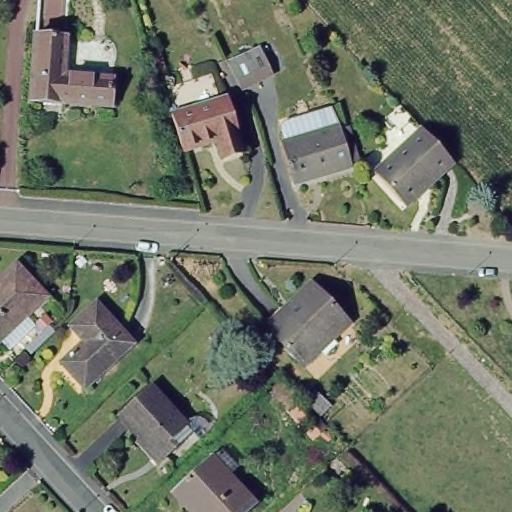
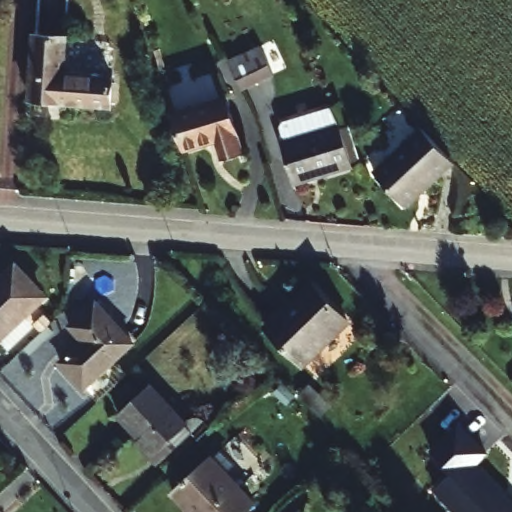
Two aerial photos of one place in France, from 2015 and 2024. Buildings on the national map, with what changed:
unchanged [(25,96),(31,32),(60,35),(57,63),(56,71),(64,71),(107,76),(104,104),(90,103),(25,96)]
unchanged [(224,58),(254,45),(267,72),(237,86),(224,58)]
unchanged [(221,138),(187,148),(177,111),(232,97),(248,150),(227,156),(221,138)]
unchanged [(322,176),(296,184),(285,144),(286,144),(282,129),(286,123),(305,118),(310,137),(346,127),(357,171),(324,180),(322,176)]
unchanged [(377,173),(424,130),(435,141),(455,163),(434,182),(430,179),(405,202),(377,173)]
unchanged [(43,294),(0,334),(0,280),(17,265),(43,294)]
unchanged [(346,319),(302,363),(265,326),(286,304),(308,283),(346,319)]
unchanged [(86,386),(62,360),(84,340),(71,325),(97,301),(134,342),(86,386)]
unchanged [(165,459),(157,451),(156,452),(119,412),(151,383),(187,423),(195,431),(165,459)]
new [(455,479),(434,457),(462,431),(489,459),(476,471),(512,509),(512,512),(454,512),(438,495),(455,479)]
unchanged [(196,512),(175,489),(212,455),(255,501),(243,512),(196,512)]

